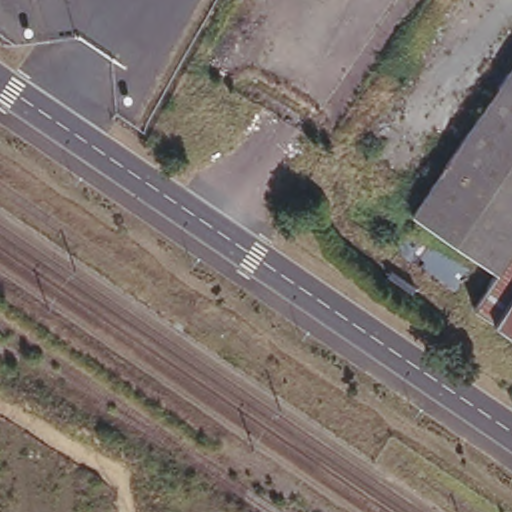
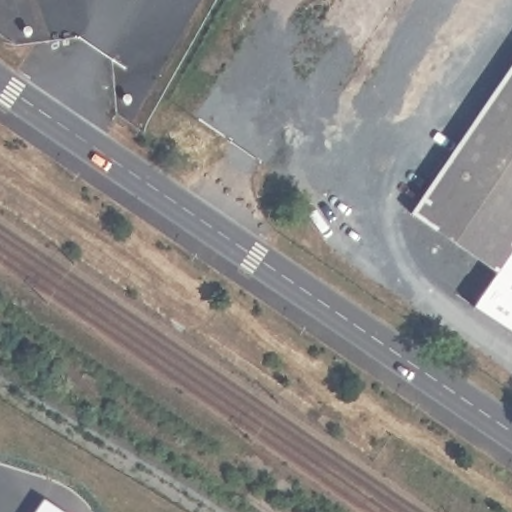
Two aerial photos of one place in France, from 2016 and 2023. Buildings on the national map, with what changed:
unchanged [(473,301),(497,266),(410,203),(512,58),(512,329),(473,301)]
new [(61,512),(37,512),(45,500),(61,512)]

